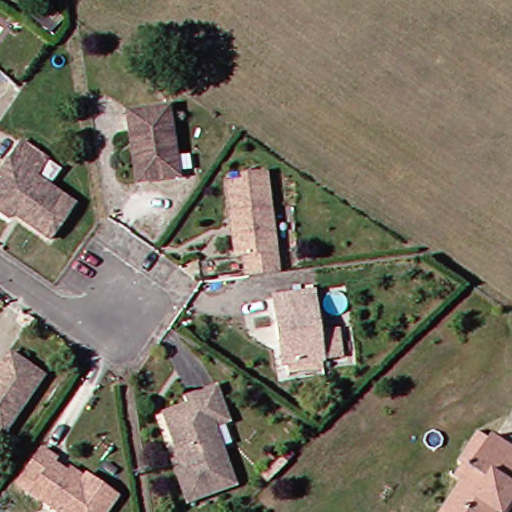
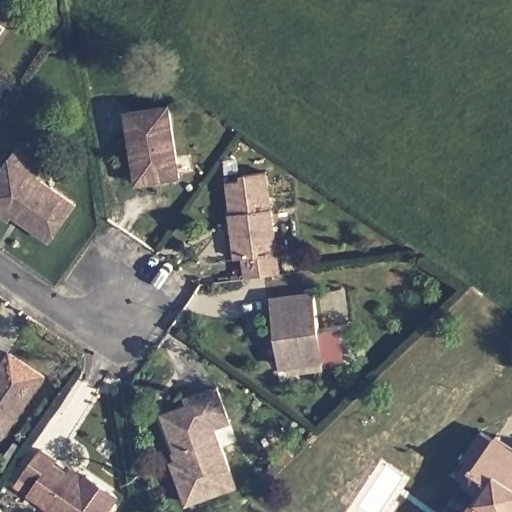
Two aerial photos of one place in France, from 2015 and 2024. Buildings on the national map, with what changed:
unchanged [(128,152),(122,111),(165,105),(177,176),(141,181),(132,183),(128,152)]
unchanged [(2,183),(0,181),(0,173),(6,164),(19,146),(45,164),(33,183),(71,209),(46,244),(17,224),(9,219),(7,222),(0,217),(0,185),(2,183)]
unchanged [(225,215),(228,215),(223,183),(239,180),(238,175),(261,172),(279,272),(246,277),(242,257),(232,259),(228,234),(227,228),(225,215)]
unchanged [(275,333),(270,301),(312,294),(323,364),(288,369),(281,370),(275,333)]
unchanged [(5,359),(39,381),(7,427),(0,437),(0,366),(5,359)]
unchanged [(180,459),(164,414),(189,404),(186,397),(215,387),(228,421),(207,429),(229,487),(188,502),(173,461),(180,459)]
unchanged [(448,479),(456,466),(452,463),(466,441),(475,428),(482,433),(512,452),(512,505),(507,512),(438,512),(441,508),(457,484),(448,479)]
unchanged [(115,498),(105,512),(52,512),(25,494),(32,484),(19,477),(38,449),(55,461),(51,466),(63,474),(66,469),(82,479),(84,476),(115,498)]

